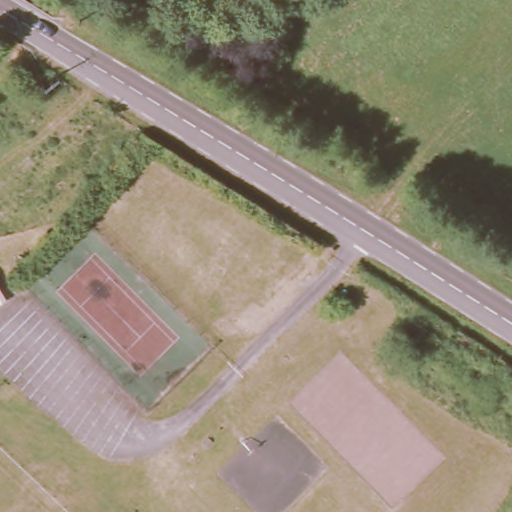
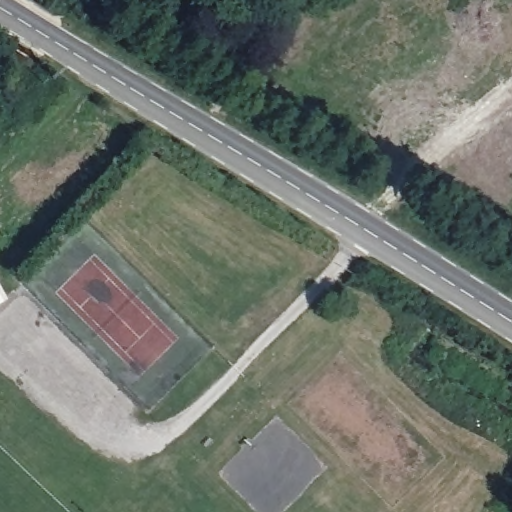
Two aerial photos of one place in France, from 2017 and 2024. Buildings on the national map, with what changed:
unchanged [(10,300),(0,306),(0,280),(10,300)]

